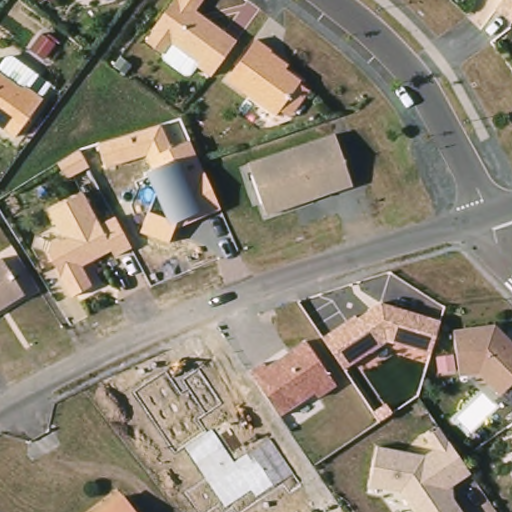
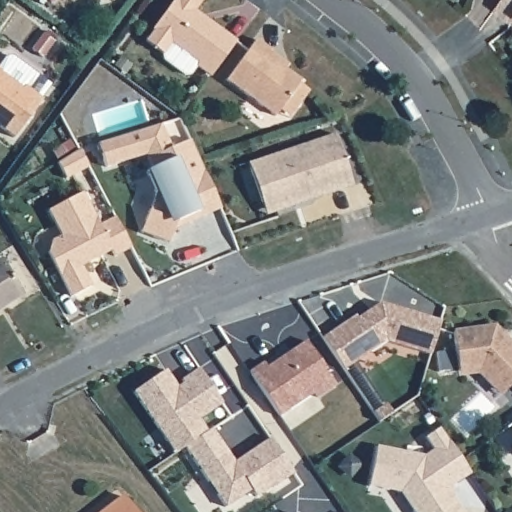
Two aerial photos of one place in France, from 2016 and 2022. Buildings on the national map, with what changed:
unchanged [(48,0),(52,0),(50,2),(48,0)]
unchanged [(198,63),(171,43),(163,54),(145,41),(154,31),(153,30),(174,0),(202,0),(194,11),(208,21),(236,41),(210,76),(196,66),(198,63)]
unchanged [(512,0),(512,16),(500,8),(505,0),(512,0)]
unchanged [(279,111),(274,116),(225,81),(255,40),(270,51),(269,53),(288,66),(284,70),(300,81),(299,84),(309,91),(298,106),(296,105),(288,117),(279,111)]
unchanged [(24,86),(42,99),(14,137),(0,127),(0,72),(23,89),(24,86)]
unchanged [(155,194),(145,172),(153,170),(145,156),(104,168),(96,144),(163,125),(173,149),(190,141),(220,211),(174,230),(169,245),(139,234),(155,194)]
unchanged [(334,134),(353,186),(265,216),(248,164),(334,134)]
unchanged [(79,149),(88,167),(65,179),(57,163),(79,149)]
unchanged [(99,226),(114,217),(131,248),(114,257),(111,251),(80,267),(91,287),(70,297),(48,253),(51,241),(61,236),(48,211),(82,193),(99,226)]
unchanged [(24,295),(0,309),(0,259),(1,258),(24,295)]
unchanged [(321,338),(356,314),(357,317),(380,302),(439,321),(429,356),(383,342),(343,371),(321,338)]
unchanged [(492,327),(512,348),(512,388),(511,388),(499,400),(478,378),(459,380),(451,333),(492,327)]
unchanged [(249,373),(263,364),(268,368),(304,342),(335,385),(318,398),(314,392),(278,417),(249,373)]
new [(164,370),(179,393),(186,388),(180,380),(197,369),(221,404),(198,420),(206,432),(206,433),(184,448),(174,455),(131,392),(164,370)]
unchanged [(422,457),(430,452),(422,437),(439,427),(469,474),(451,485),(451,495),(461,512),(412,512),(399,494),(367,487),(374,448),(422,457)]
new [(206,433),(206,432),(210,430),(237,469),(249,460),(245,454),(269,439),(292,474),(272,487),(272,486),(254,497),(250,490),(224,508),(184,448),(206,433)]
unchanged [(511,442),(512,441),(512,443),(511,442)]
unchanged [(139,512),(107,512),(127,497),(139,512)]

